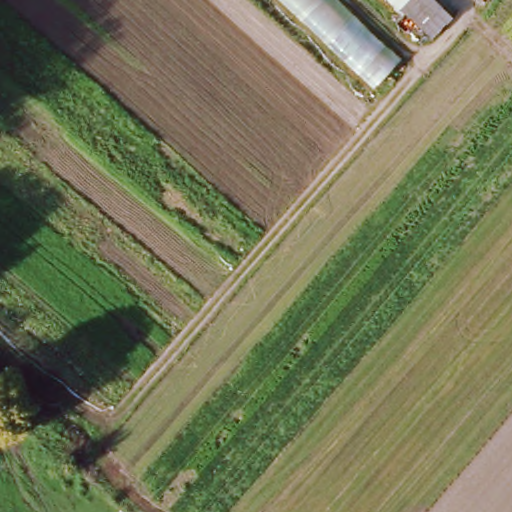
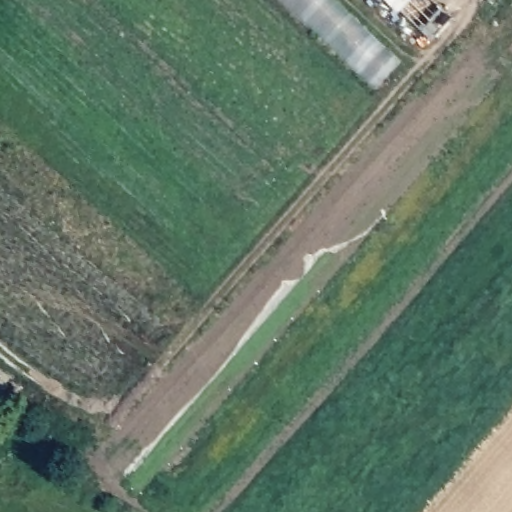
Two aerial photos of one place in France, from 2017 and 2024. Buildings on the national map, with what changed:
unchanged [(378,89),(278,0),(344,0),(407,57),(378,89)]
unchanged [(417,28),(398,10),(388,0),(433,0),(438,5),(417,28)]

